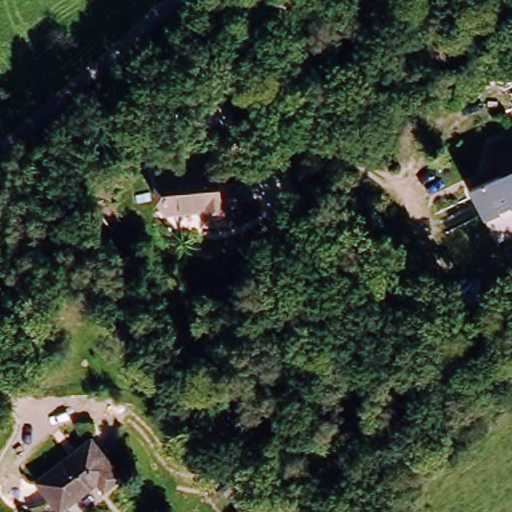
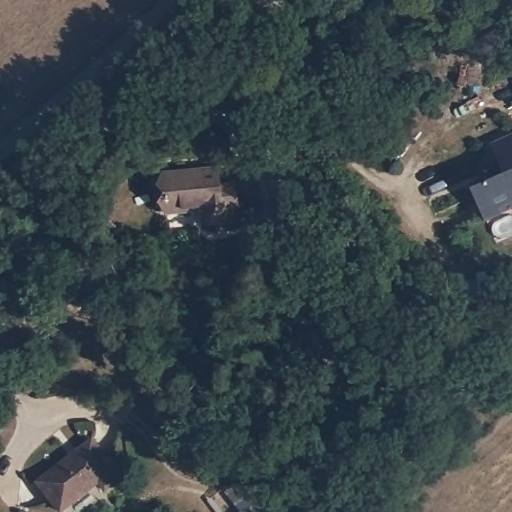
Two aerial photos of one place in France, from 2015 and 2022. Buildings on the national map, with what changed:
unchanged [(512,80),(512,83),(511,80),(512,80)]
unchanged [(496,177),(484,150),(511,140),(512,141),(512,206),(481,220),(469,190),(496,177)]
unchanged [(168,195),(225,191),(225,224),(170,229),(168,195)]
unchanged [(410,250),(436,230),(462,267),(430,278),(410,250)]
unchanged [(40,483),(95,437),(127,480),(110,494),(102,484),(70,512),(63,512),(40,483)]
unchanged [(236,455),(253,478),(248,483),(262,504),(251,512),(250,512),(217,470),(236,455)]

